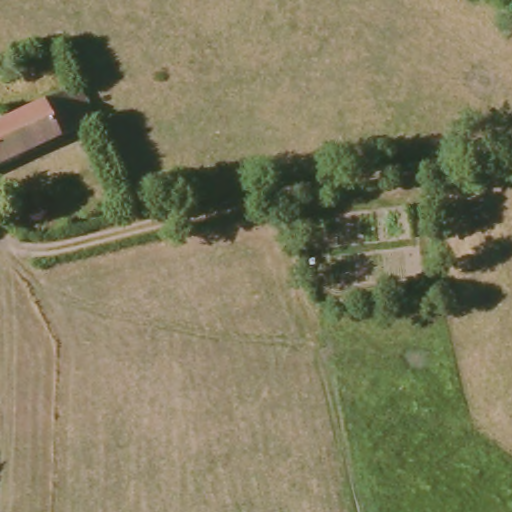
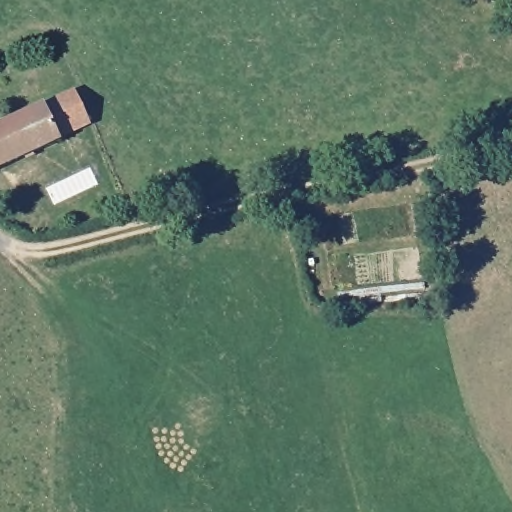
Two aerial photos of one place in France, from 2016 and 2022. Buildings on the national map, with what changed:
unchanged [(9,125),(12,135),(75,110),(83,106),(91,125),(98,141),(0,182),(0,129),(9,125)]

